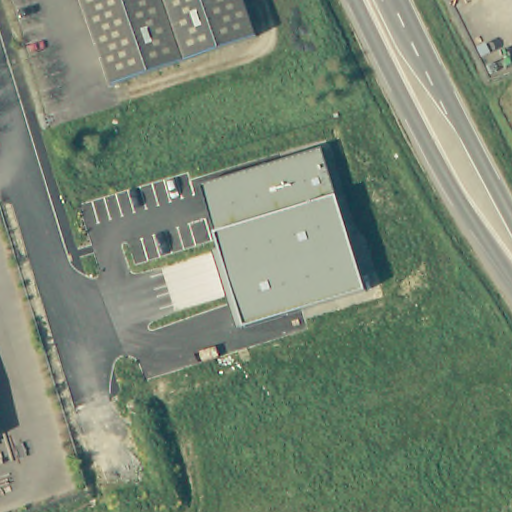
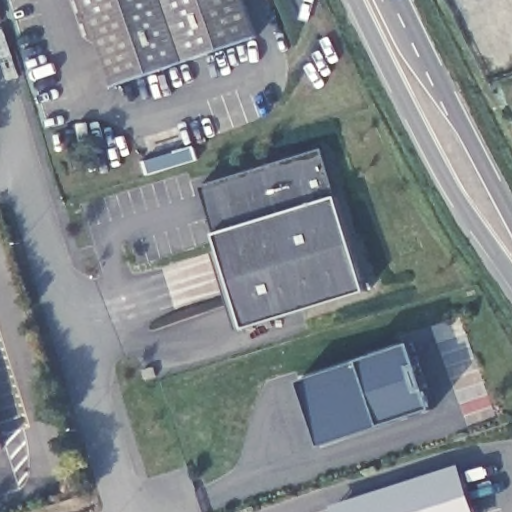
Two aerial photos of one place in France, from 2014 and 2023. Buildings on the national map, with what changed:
unchanged [(256,36),(113,86),(84,0),(244,0),(256,36)]
unchanged [(365,291),(243,328),(216,232),(202,187),(320,150),(336,196),(365,291)]
new [(417,363),(409,365),(418,390),(426,388),(433,409),(318,448),(297,381),(411,343),(417,363)]
unchanged [(472,512),(331,512),(328,505),(457,464),(472,512)]

